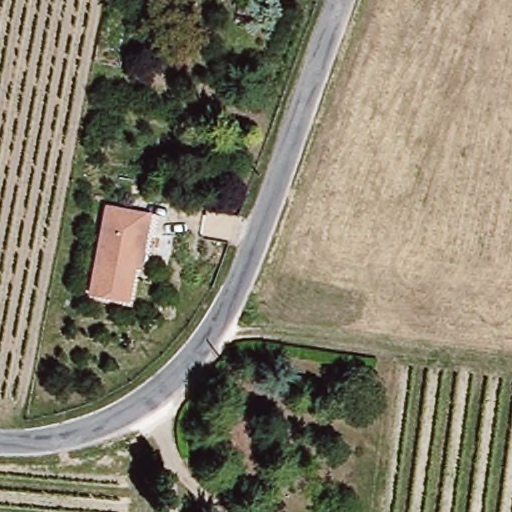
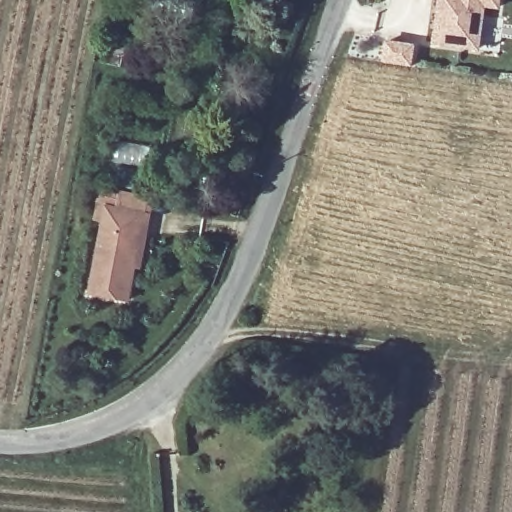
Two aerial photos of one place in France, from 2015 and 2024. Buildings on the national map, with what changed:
new [(487,8),(481,50),(432,43),(437,0),(502,0),(501,11),(487,8)]
unchanged [(129,35),(127,53),(102,49),(105,31),(129,35)]
new [(389,40),(416,46),(412,67),(385,61),(389,40)]
unchanged [(139,234),(134,265),(129,264),(124,297),(85,291),(100,204),(144,212),(139,234)]

